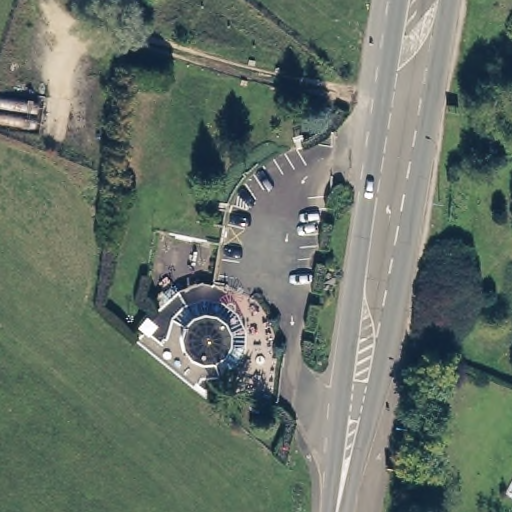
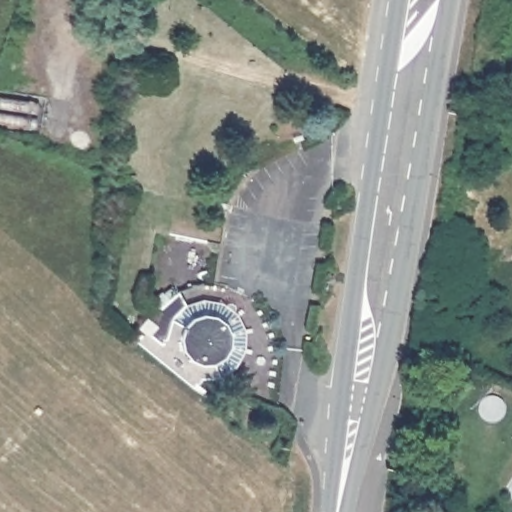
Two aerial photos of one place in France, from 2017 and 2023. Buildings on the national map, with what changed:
unchanged [(145,325),(148,317),(157,306),(166,297),(162,290),(167,286),(176,286),(181,296),(184,302),(199,297),(218,299),(234,309),(240,328),(241,347),(229,365),(213,373),(196,377),(191,388),(134,341),(145,325)]

